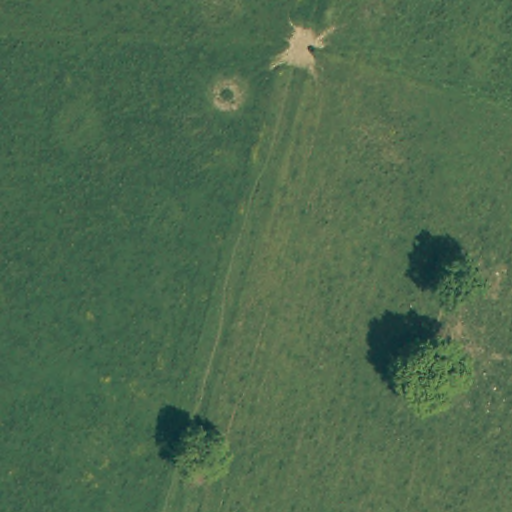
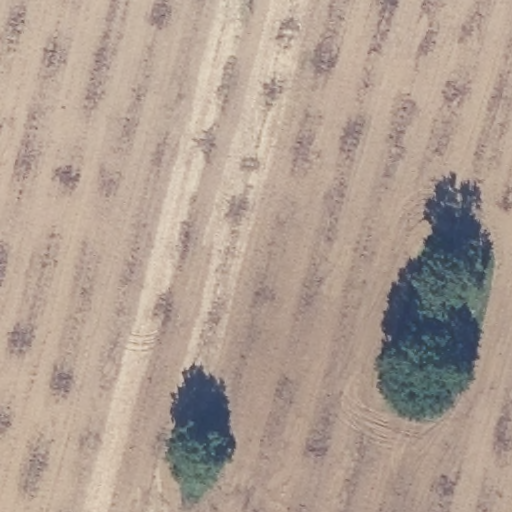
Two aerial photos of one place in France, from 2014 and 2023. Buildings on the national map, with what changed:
[]

